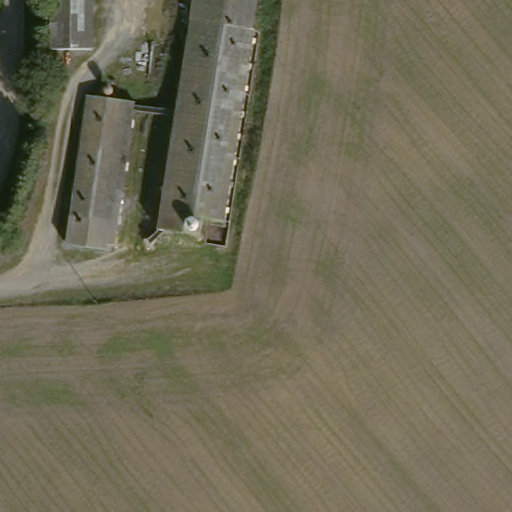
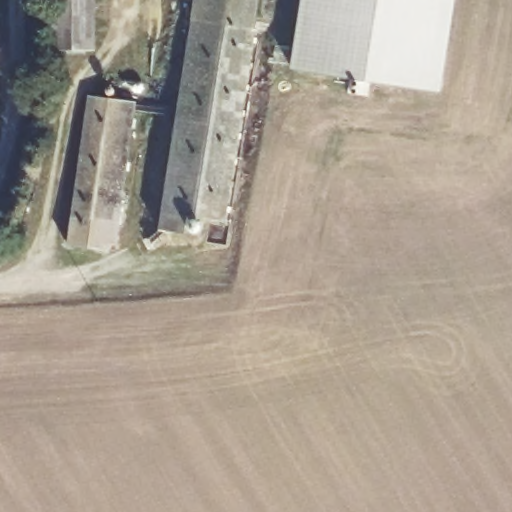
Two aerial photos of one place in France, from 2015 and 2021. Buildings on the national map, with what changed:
unchanged [(49,0),(93,0),(91,55),(49,52),(49,0)]
unchanged [(207,218),(205,237),(167,230),(201,0),(266,0),(234,222),(207,218)]
new [(455,0),(441,90),(292,67),(302,0),(455,0)]
unchanged [(126,220),(78,216),(98,94),(146,99),(126,220)]
unchanged [(119,260),(72,252),(78,216),(126,220),(119,260)]

